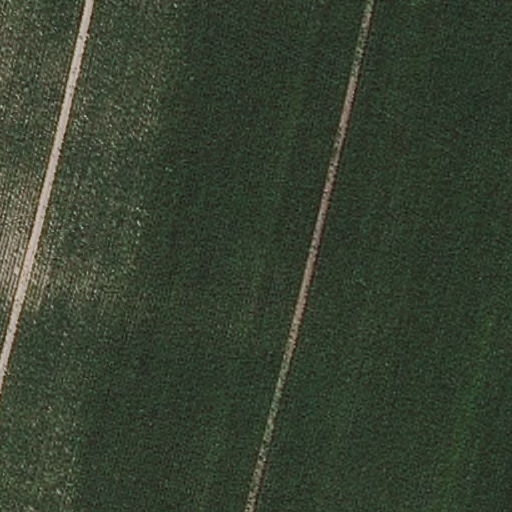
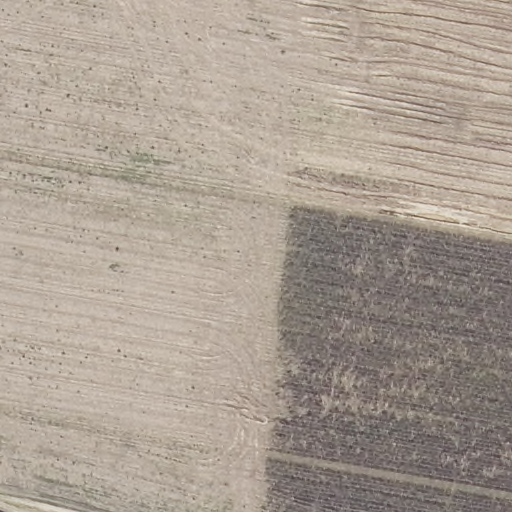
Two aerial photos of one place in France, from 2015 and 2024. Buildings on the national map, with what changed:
[]

